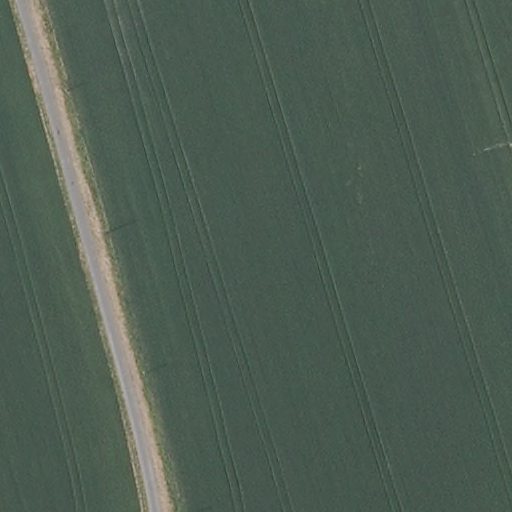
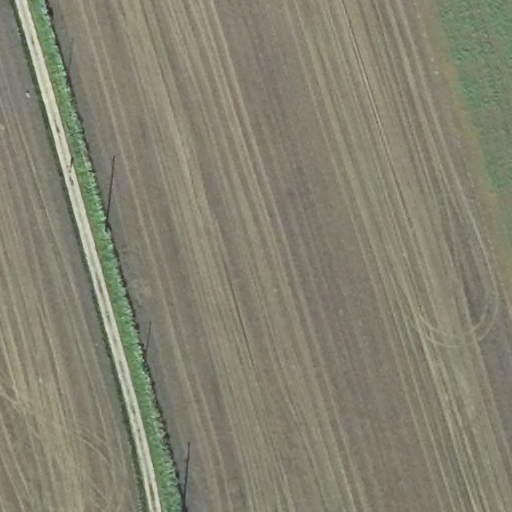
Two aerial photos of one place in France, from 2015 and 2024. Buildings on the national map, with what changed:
[]

